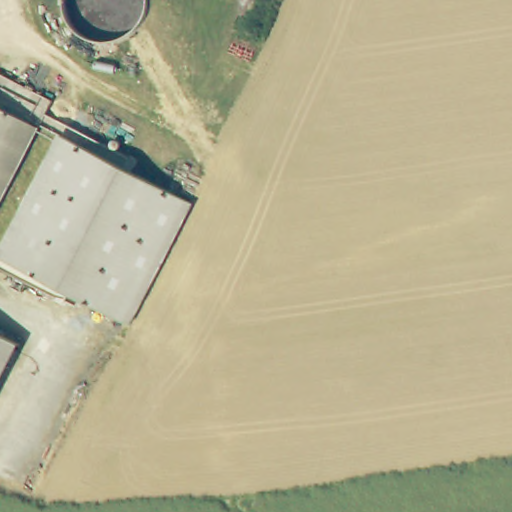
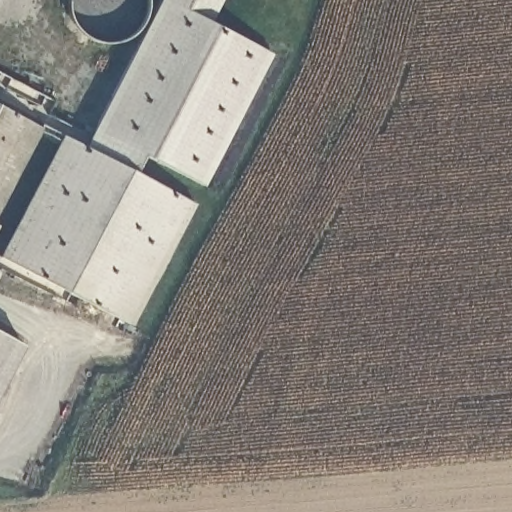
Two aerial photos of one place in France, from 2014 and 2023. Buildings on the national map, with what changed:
new [(160,0),(224,0),(214,20),(274,53),(206,187),(142,155),(135,173),(84,146),(160,0)]
unchanged [(0,200),(0,106),(39,127),(0,200)]
unchanged [(62,135),(195,205),(133,326),(0,257),(62,135)]
unchanged [(0,382),(0,337),(18,347),(0,382)]

